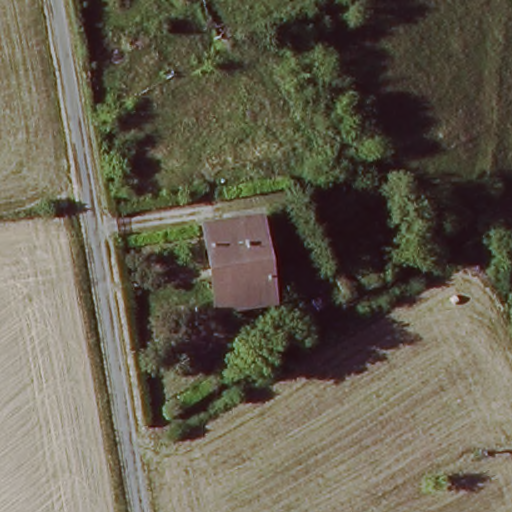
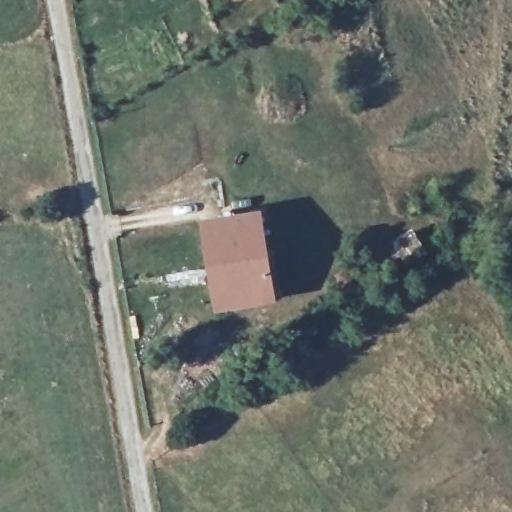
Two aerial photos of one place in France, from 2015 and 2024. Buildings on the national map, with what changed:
unchanged [(210,262),(205,222),(264,214),(277,297),(238,303),(232,260),(210,262)]

